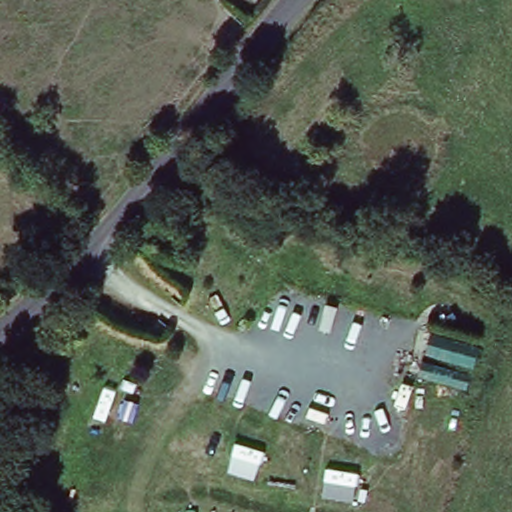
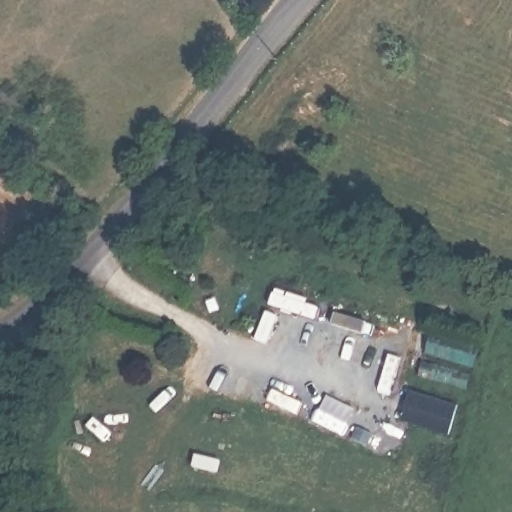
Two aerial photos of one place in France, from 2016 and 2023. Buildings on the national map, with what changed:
new [(412,387),(459,401),(449,436),(400,421),(412,387)]

